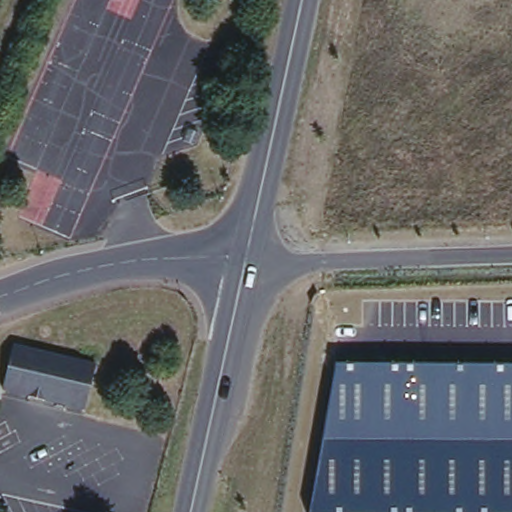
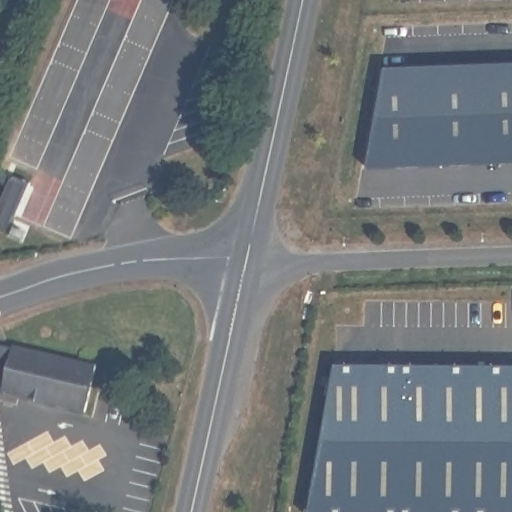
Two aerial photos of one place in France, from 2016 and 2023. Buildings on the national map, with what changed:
new [(384,60),(512,57),(512,164),(367,167),(384,60)]
unchanged [(99,359),(88,405),(4,386),(15,341),(99,359)]
unchanged [(335,364),(512,365),(512,512),(308,512),(335,364)]

